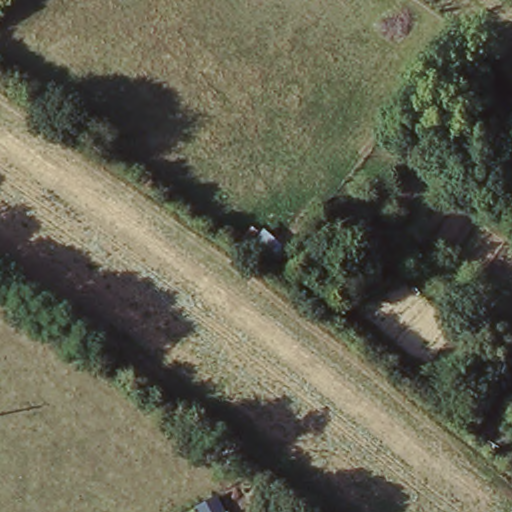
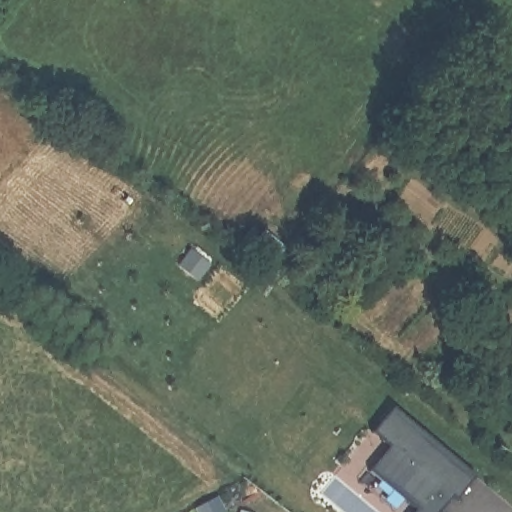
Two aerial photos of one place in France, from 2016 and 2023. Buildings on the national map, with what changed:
new [(371,430),(387,412),(469,478),(453,498),(448,495),(434,512),(412,512),(414,509),(367,469),(388,444),(371,430)]
unchanged [(226,512),(199,512),(197,507),(217,496),(226,512)]

